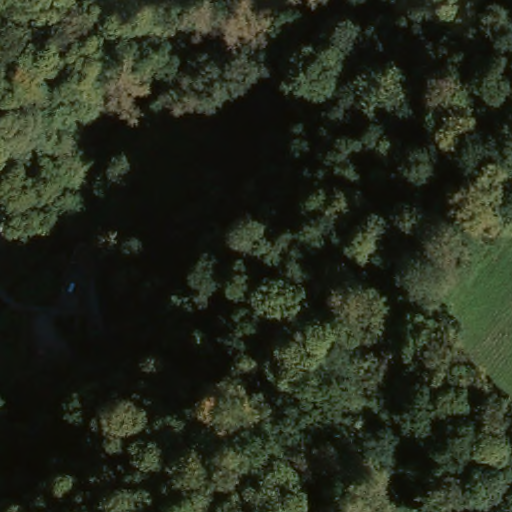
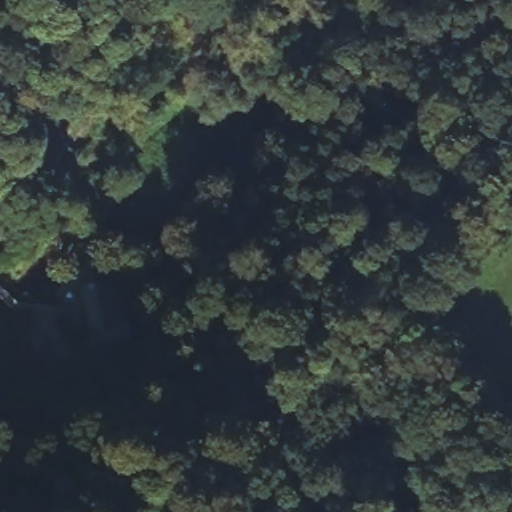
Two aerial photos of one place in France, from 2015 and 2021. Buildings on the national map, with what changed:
unchanged [(72,288),(96,281),(112,279),(120,299),(127,310),(131,323),(139,346),(101,361),(92,339),(72,288)]

